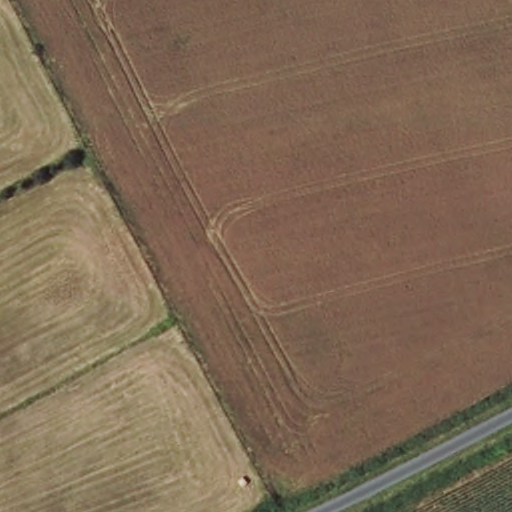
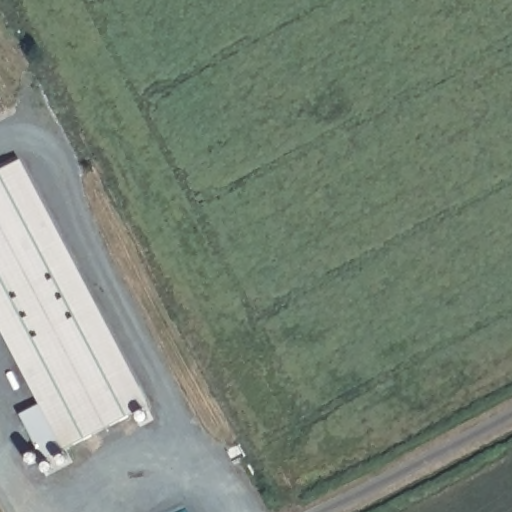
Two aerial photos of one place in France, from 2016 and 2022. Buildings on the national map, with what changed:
new [(11,150),(146,404),(46,457),(21,411),(42,400),(0,321),(0,156),(11,150)]

